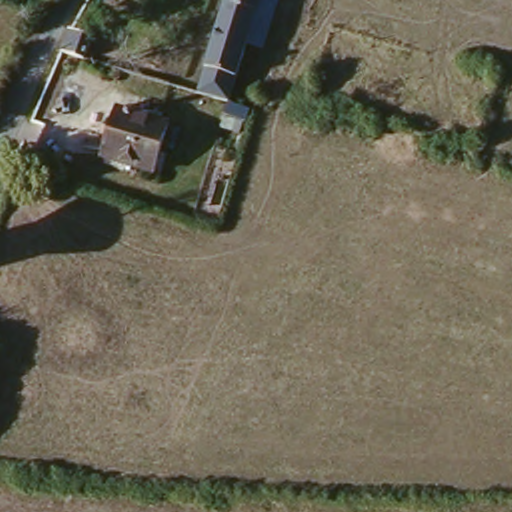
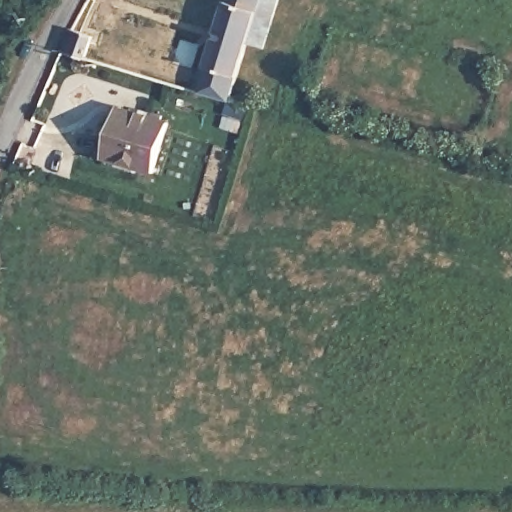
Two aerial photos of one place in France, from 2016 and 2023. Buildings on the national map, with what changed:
unchanged [(274,0),(257,50),(242,45),(225,103),(193,94),(223,0),(274,0)]
unchanged [(61,51),(68,30),(69,29),(91,37),(84,61),(61,51)]
unchanged [(148,173),(98,157),(112,108),(163,124),(148,173)]

